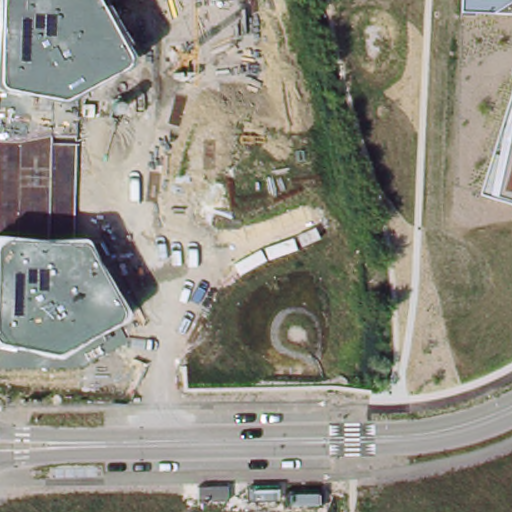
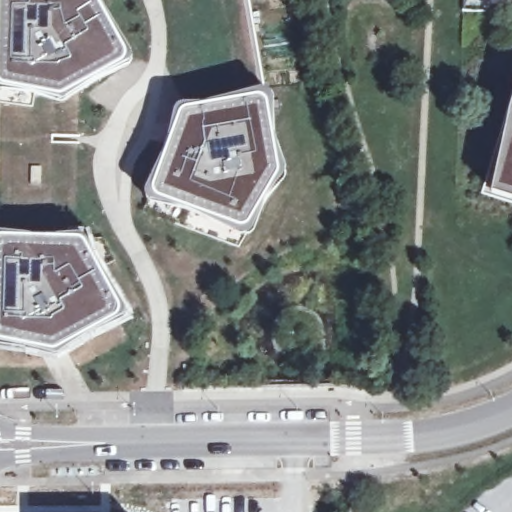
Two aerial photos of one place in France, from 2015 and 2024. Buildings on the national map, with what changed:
unchanged [(63,100),(0,88),(0,0),(98,0),(101,6),(105,5),(128,41),(124,44),(131,57),(128,66),(63,100)]
new [(180,114),(191,118),(195,108),(257,97),(260,115),(270,113),(278,163),(267,165),(271,189),(253,220),(245,215),(237,227),(163,200),(168,188),(155,184),(180,114)]
unchanged [(492,194),(510,113),(512,104),(512,200),(492,194)]
unchanged [(59,353),(0,343),(0,233),(46,238),(81,235),(98,264),(125,310),(125,317),(59,353)]

